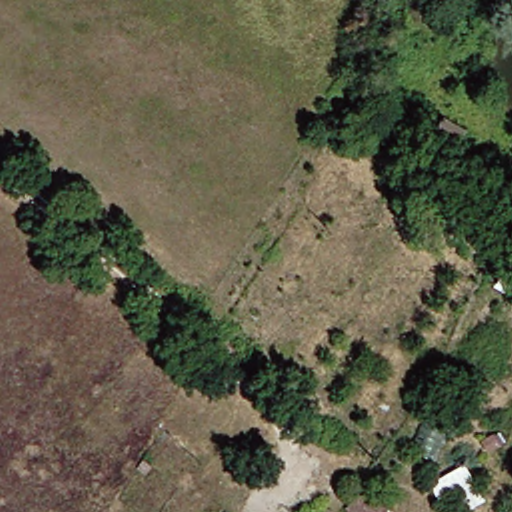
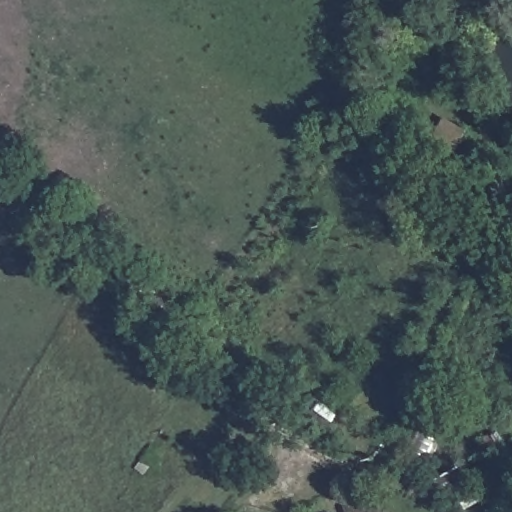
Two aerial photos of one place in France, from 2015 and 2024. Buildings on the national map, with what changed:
unchanged [(442,116),(465,136),(448,161),(427,141),(442,116)]
unchanged [(458,465),(477,505),(463,512),(458,512),(450,497),(429,506),(420,485),(458,465)]
unchanged [(369,511),(370,512),(347,512),(351,507),(365,495),(373,506),(369,511)]
unchanged [(379,512),(370,512),(369,511),(373,506),(379,512)]

